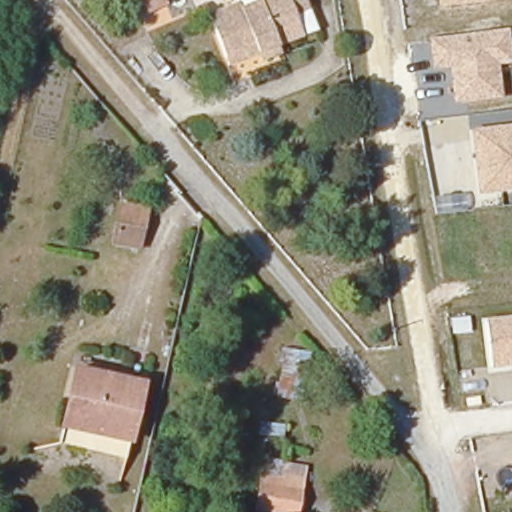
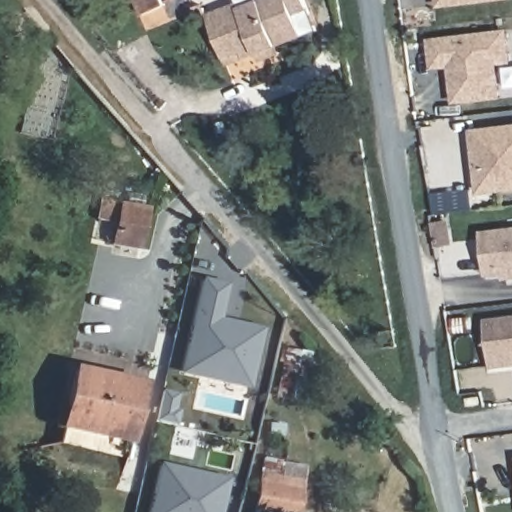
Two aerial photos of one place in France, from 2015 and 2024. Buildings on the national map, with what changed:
unchanged [(165,3),(135,16),(128,0),(164,0),(165,3)]
unchanged [(237,3),(240,8),(258,0),(305,0),(310,10),(295,16),(303,36),(228,65),(207,16),(237,3)]
unchanged [(437,5),(437,0),(487,0),(437,5)]
unchanged [(510,60),(494,63),(499,98),(452,102),(448,67),(431,69),(428,37),(510,31),(510,60)]
unchanged [(480,193),(473,132),(512,126),(512,189),(480,193)]
unchanged [(112,245),(119,205),(144,210),(136,250),(112,245)]
new [(502,280),(502,274),(487,276),(481,231),(512,228),(512,279),(502,280)]
new [(202,371),(178,366),(197,283),(221,289),(214,323),(262,334),(254,373),(251,383),(202,371)]
unchanged [(493,369),(487,320),(512,318),(512,367),(493,369)]
unchanged [(303,353),(296,397),(275,394),(282,349),(303,353)]
unchanged [(85,427),(88,411),(64,404),(75,363),(139,380),(125,436),(85,427)]
unchanged [(121,453),(55,435),(64,404),(88,411),(85,427),(125,436),(121,453)]
unchanged [(281,421),(280,432),(271,431),(273,421),(281,421)]
unchanged [(296,512),(254,512),(259,459),(303,466),(296,512)]
new [(185,471),(224,480),(220,501),(217,512),(147,512),(158,465),(185,471)]

